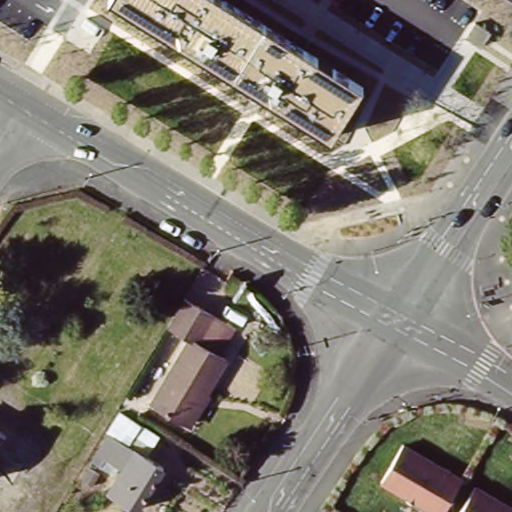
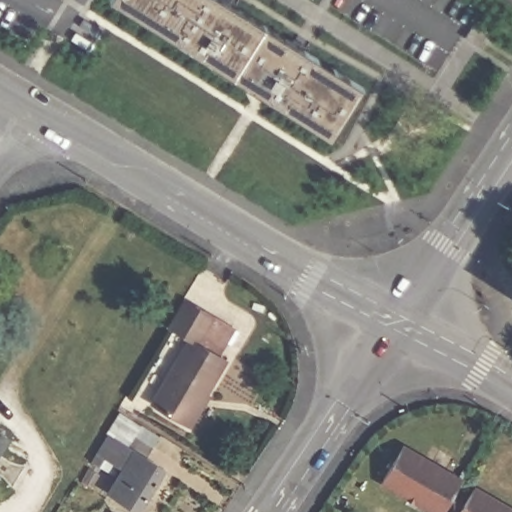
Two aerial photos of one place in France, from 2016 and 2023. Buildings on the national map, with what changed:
unchanged [(339,131),(121,0),(235,0),(369,81),(339,131)]
unchanged [(192,419),(156,397),(194,335),(173,321),(189,294),(233,320),(238,324),(223,350),(231,355),(192,419)]
unchanged [(169,436),(163,446),(143,433),(139,440),(119,428),(129,411),(169,436)]
unchanged [(125,436),(111,459),(106,456),(120,433),(125,436)]
unchanged [(0,450),(0,434),(7,438),(0,450)]
unchanged [(173,465),(146,509),(117,491),(132,467),(119,459),(131,440),(173,465)]
unchanged [(380,481),(404,441),(464,476),(442,512),(433,512),(380,481)]
unchanged [(94,471),(87,482),(81,479),(88,467),(94,471)]
unchanged [(477,484),(512,505),(512,512),(460,512),(477,484)]

